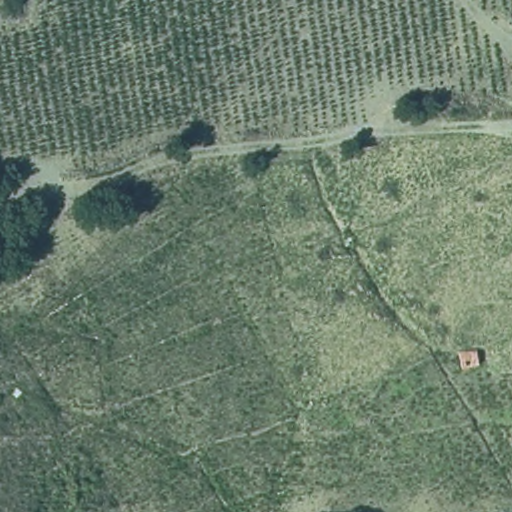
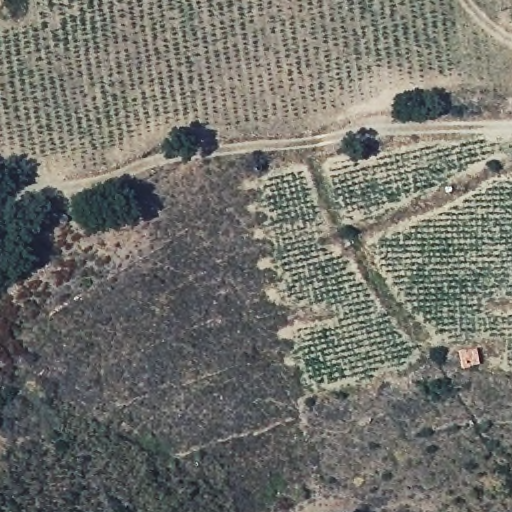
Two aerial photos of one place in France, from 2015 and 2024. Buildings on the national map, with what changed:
unchanged [(480,351),(484,373),(462,377),(458,355),(480,351)]

